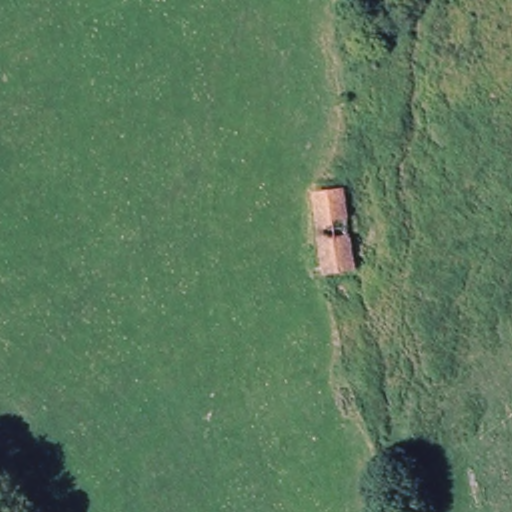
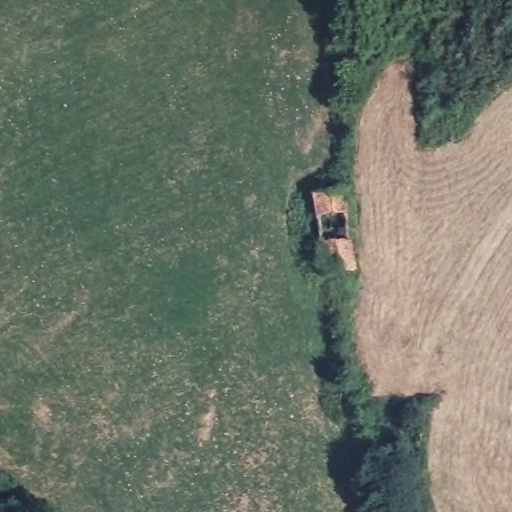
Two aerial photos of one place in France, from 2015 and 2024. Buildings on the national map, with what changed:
unchanged [(327,277),(317,198),(348,194),(356,273),(327,277)]

